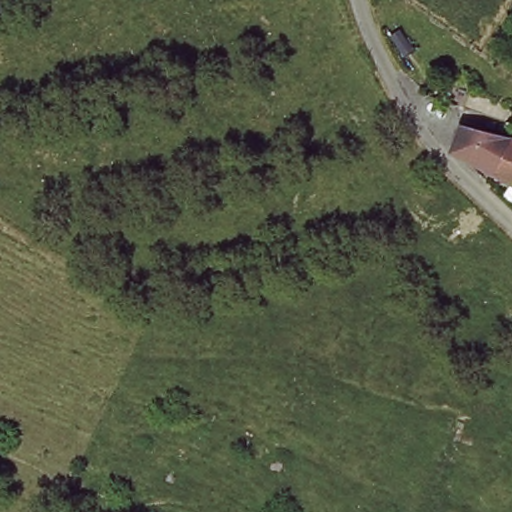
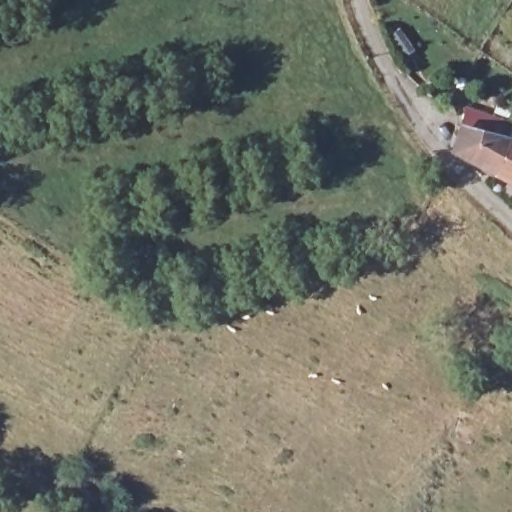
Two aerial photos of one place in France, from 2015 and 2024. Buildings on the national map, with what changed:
unchanged [(464,128),(509,139),(512,141),(512,184),(451,153),(464,128)]

